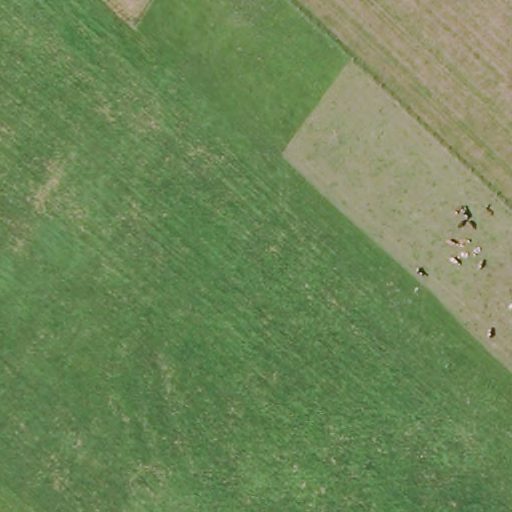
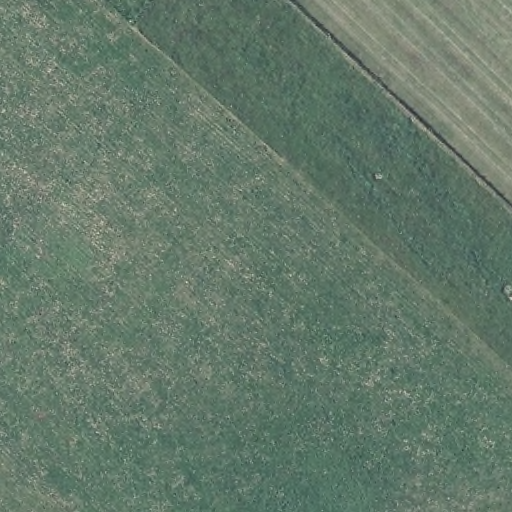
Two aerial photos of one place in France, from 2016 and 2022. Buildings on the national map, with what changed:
[]

